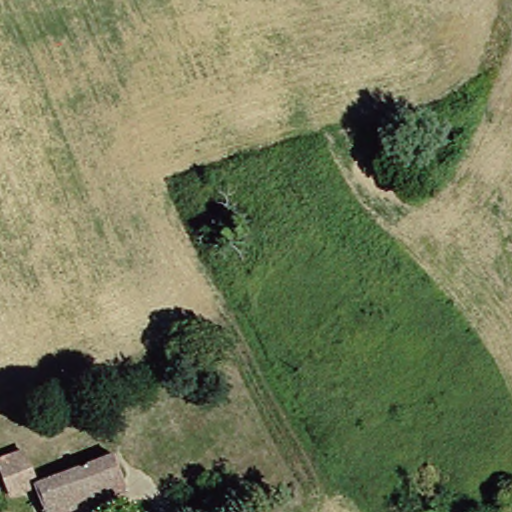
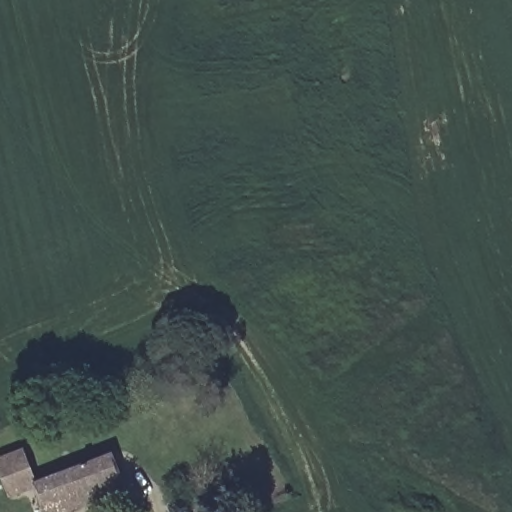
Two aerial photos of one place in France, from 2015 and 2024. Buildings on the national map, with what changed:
unchanged [(12,491),(0,455),(0,453),(29,442),(40,480),(12,491)]
unchanged [(133,493),(79,512),(52,512),(40,480),(118,452),(133,493)]
unchanged [(243,485),(252,507),(239,512),(201,512),(199,501),(243,485)]

